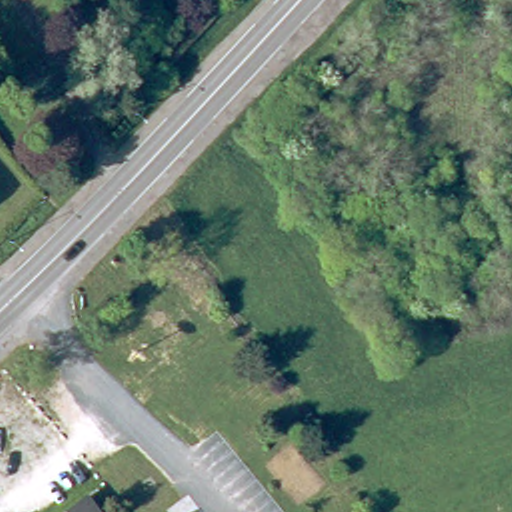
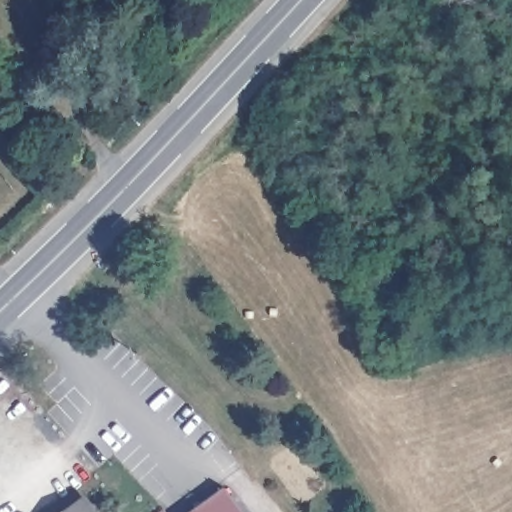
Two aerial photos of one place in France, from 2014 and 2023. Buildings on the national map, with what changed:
unchanged [(137,47),(127,53),(122,45),(131,39),(137,47)]
new [(238,509),(241,512),(180,512),(221,492),(238,509)]

